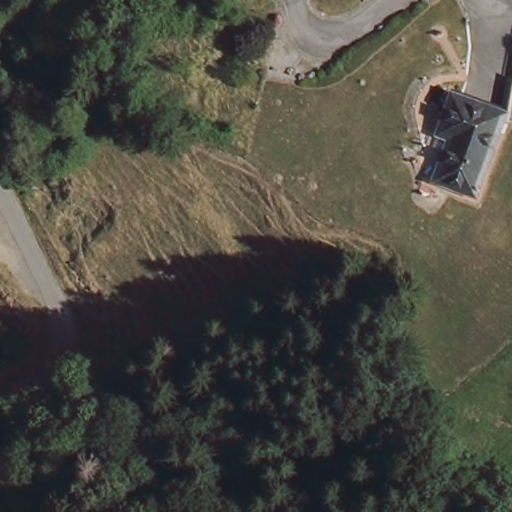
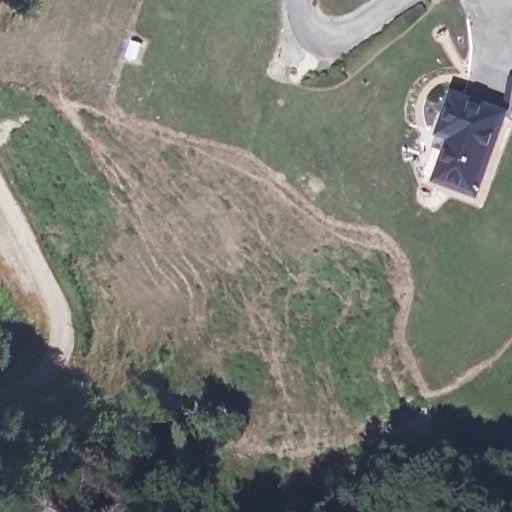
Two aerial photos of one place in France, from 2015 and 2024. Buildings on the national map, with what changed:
unchanged [(458,92),(507,117),(469,194),(432,177),(450,138),(438,132),(458,92)]

